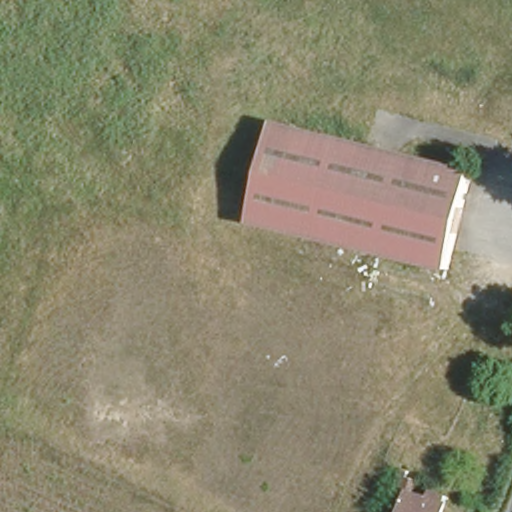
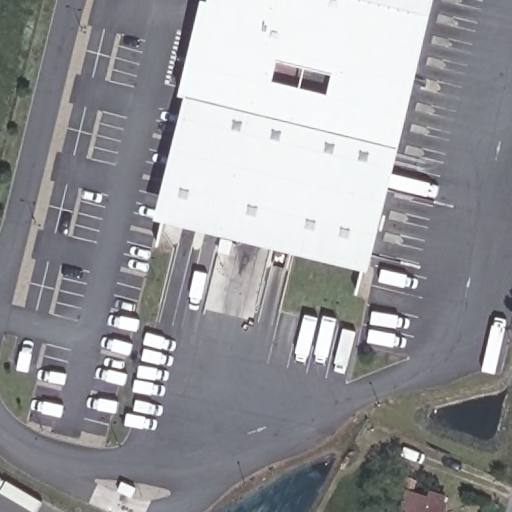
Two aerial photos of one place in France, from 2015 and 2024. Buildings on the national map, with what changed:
new [(370,270),(157,220),(187,95),(180,94),(205,0),(207,0),(210,1),(211,0),(437,0),(370,270)]
demolished [(273,116),(474,166),(446,270),(248,221),(273,116)]
unchanged [(405,466),(404,473),(416,476),(412,486),(404,512),(381,512),(396,463),(405,466)]
unchanged [(433,492),(445,496),(449,497),(444,512),(404,512),(412,486),(433,492)]

